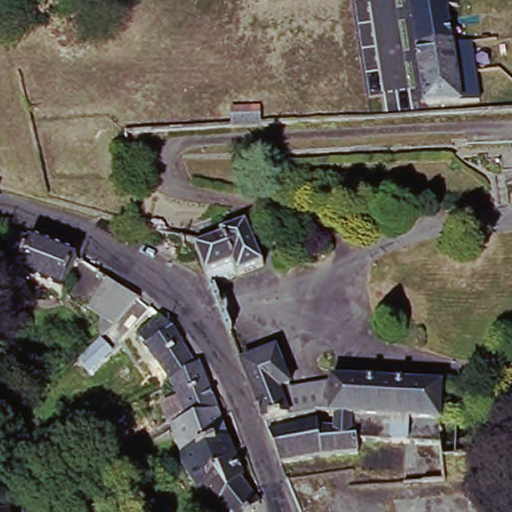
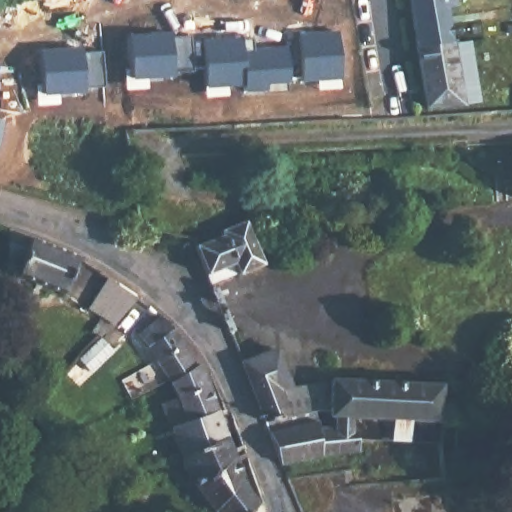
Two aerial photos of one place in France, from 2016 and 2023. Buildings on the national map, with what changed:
unchanged [(410,0),(457,0),(458,9),(447,11),(462,108),(427,111),(410,0)]
new [(340,30),(342,53),(335,53),(333,80),(300,81),(297,33),(340,30)]
new [(171,32),(172,37),(189,36),(190,74),(172,76),(173,79),(130,78),(127,35),(171,32)]
new [(240,35),(242,53),(242,69),(239,69),(240,86),(205,89),(202,37),(240,35)]
new [(253,51),(252,47),(286,45),(289,85),(265,85),(265,93),(241,93),(240,86),(239,69),(242,69),(242,53),(253,51)]
new [(82,47),(83,53),(103,53),(105,89),(85,89),(85,94),(44,97),(40,49),(82,47)]
demolished [(170,103),(181,100),(184,121),(172,122),(170,103)]
demolished [(67,110),(121,107),(122,126),(68,129),(67,110)]
unchanged [(237,115),(262,113),(263,127),(237,129),(237,115)]
new [(0,133),(0,121),(3,122),(0,133)]
unchanged [(504,172),(502,160),(490,161),(488,148),(512,145),(512,171),(504,172)]
unchanged [(204,266),(197,244),(222,233),(222,229),(244,207),(262,263),(238,274),(237,272),(211,282),(204,266)]
unchanged [(8,231),(32,238),(77,256),(62,293),(15,275),(22,260),(17,258),(13,269),(7,267),(7,233),(8,231)]
unchanged [(116,325),(112,328),(90,310),(111,283),(141,301),(116,325)]
unchanged [(157,437),(175,431),(175,429),(192,424),(187,411),(185,404),(176,385),(162,362),(141,336),(164,318),(177,331),(188,348),(202,370),(204,369),(212,389),(218,403),(222,414),(233,441),(186,459),(177,436),(159,443),(157,437)]
unchanged [(237,361),(287,342),(300,374),(279,382),(276,378),(271,380),(285,415),(260,420),(237,361)]
unchanged [(285,415),(271,380),(276,378),(279,382),(300,374),(301,378),(326,379),(325,408),(285,415)]
unchanged [(264,431),(316,419),(319,425),(328,426),(329,415),(326,414),(325,408),(326,379),(439,383),(437,421),(436,432),(437,442),(382,440),(353,438),(356,451),(319,455),(276,462),(264,431)]
unchanged [(186,459),(233,441),(236,450),(239,456),(200,490),(184,466),(186,459)]
unchanged [(200,490),(239,456),(247,478),(245,481),(215,512),(200,490)]
demolished [(456,484),(494,478),(500,512),(396,512),(393,492),(456,484)]
unchanged [(263,507),(258,512),(215,512),(245,481),(263,507)]

